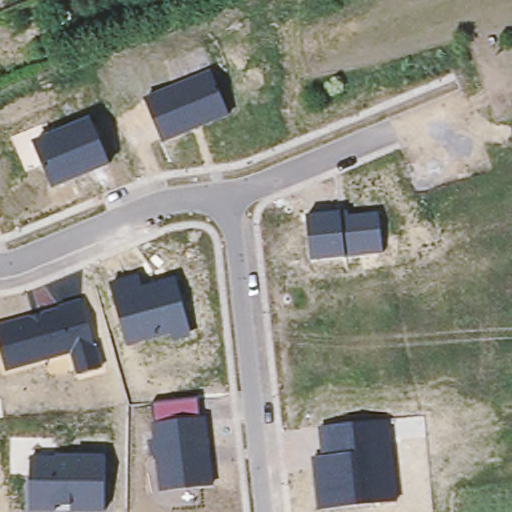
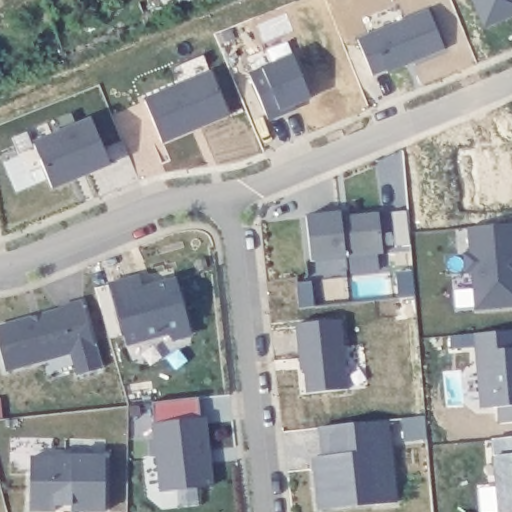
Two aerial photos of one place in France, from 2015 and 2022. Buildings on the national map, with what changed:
new [(512,0),(512,15),(484,26),(473,0),(512,0)]
new [(424,11),(441,50),(383,74),(382,71),(368,77),(353,40),(424,11)]
new [(249,74),(262,68),(294,56),(311,101),(284,112),(267,120),(249,74)]
unchanged [(159,144),(141,102),(208,74),(226,116),(197,128),(189,131),(159,144)]
unchanged [(50,190),(31,146),(88,122),(107,166),(87,174),(69,181),(50,190)]
unchanged [(379,254),(308,262),(303,217),(337,213),(343,212),(344,217),(375,214),(379,254)]
new [(456,311),(451,275),(464,273),(462,254),(469,253),(468,228),(512,224),(512,305),(456,311)]
unchanged [(136,279),(139,291),(173,281),(188,333),(186,336),(172,340),(169,338),(168,333),(124,345),(108,286),(136,279)]
unchanged [(76,359),(75,353),(9,371),(0,340),(0,329),(36,319),(43,317),(63,311),(63,309),(84,303),(98,353),(103,369),(81,376),(76,359)]
new [(303,359),(298,359),(296,324),(340,320),(349,389),(306,393),(303,359)]
new [(499,408),(492,409),(489,374),(479,375),(475,334),(512,330),(512,423),(500,425),(499,408)]
unchanged [(209,485),(159,491),(155,456),(150,456),(148,441),(153,441),(149,403),(196,398),(198,419),(201,418),(206,450),(207,462),(209,485)]
new [(0,419),(0,409),(1,419),(0,419)]
unchanged [(312,457),(323,456),(319,428),(389,420),(398,501),(318,510),(312,457)]
new [(494,458),(493,440),(512,438),(512,512),(498,512),(494,458)]
unchanged [(53,458),(53,456),(103,456),(103,511),(69,511),(69,506),(54,506),(54,511),(28,510),(28,458),(53,458)]

